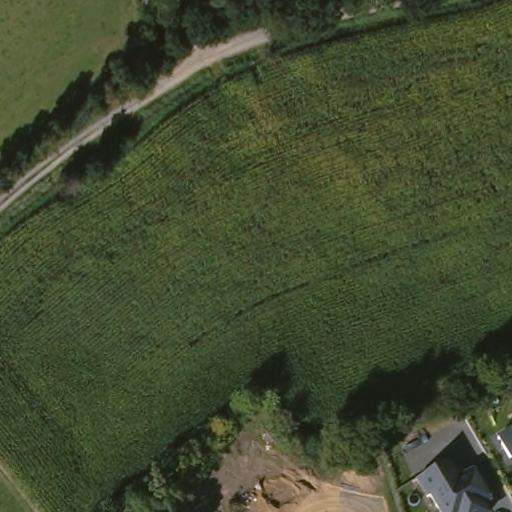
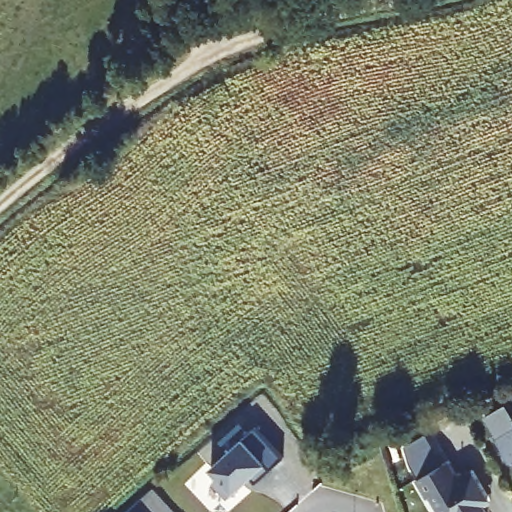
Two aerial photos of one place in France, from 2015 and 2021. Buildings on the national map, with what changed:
unchanged [(512,459),(509,460),(495,438),(512,429),(512,459)]
new [(254,430),(280,459),(252,484),(246,477),(223,498),(213,488),(220,482),(210,470),(254,430)]
unchanged [(447,461),(458,480),(474,472),(490,501),(484,506),(487,512),(433,512),(411,482),(447,461)]

